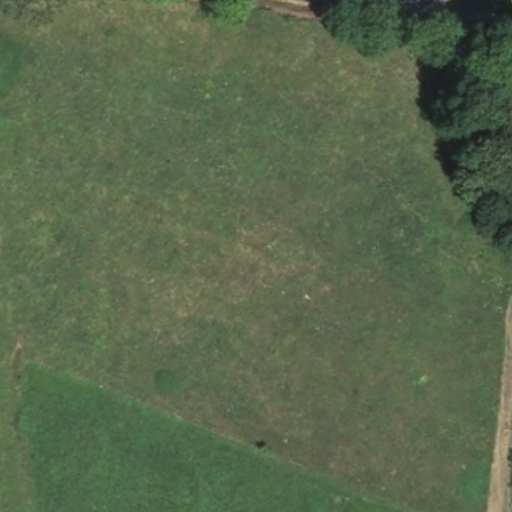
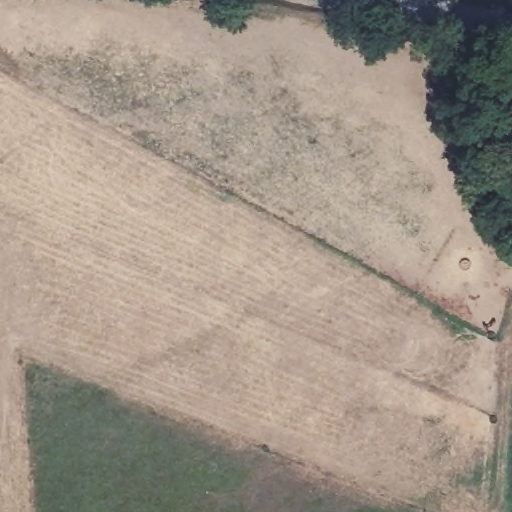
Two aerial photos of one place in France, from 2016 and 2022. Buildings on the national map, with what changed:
[]

